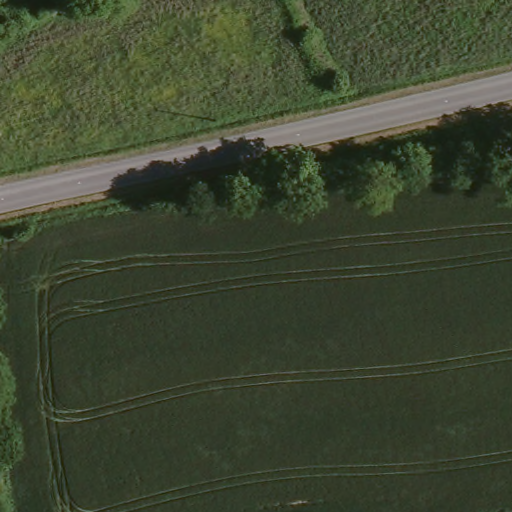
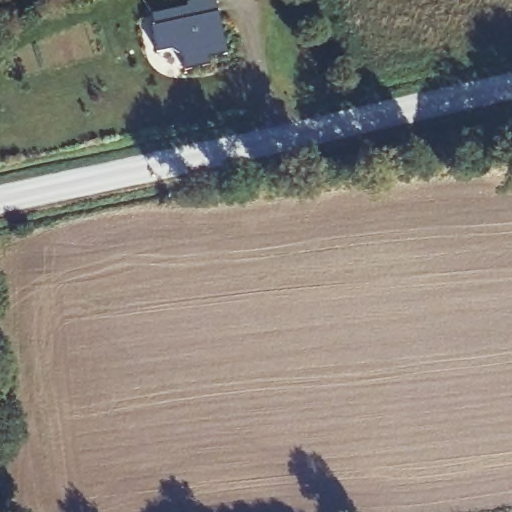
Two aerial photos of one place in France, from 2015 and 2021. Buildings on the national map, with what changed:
new [(154,12),(175,8),(189,5),(189,2),(196,0),(218,0),(220,12),(229,52),(209,57),(210,64),(185,68),(182,55),(170,46),(157,49),(153,25),(156,24),(154,12)]

